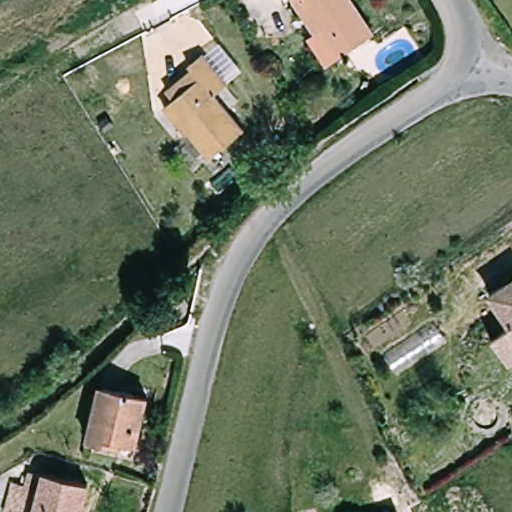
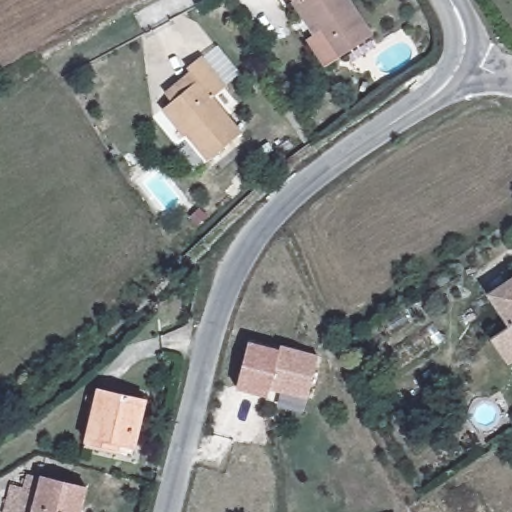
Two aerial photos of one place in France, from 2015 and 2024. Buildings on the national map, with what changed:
unchanged [(314,35),(291,0),(348,0),(371,35),(340,56),(327,66),(308,39),(314,35)]
unchanged [(161,101),(171,95),(174,94),(168,84),(197,66),(194,61),(211,50),(232,83),(217,93),(241,132),(202,157),(183,129),(180,130),(161,101)]
unchanged [(503,332),(511,326),(490,296),(512,281),(512,362),(510,364),(492,340),(503,332)]
unchanged [(447,342),(394,375),(383,356),(432,322),(447,342)]
new [(249,343),(279,351),(280,345),(319,355),(308,400),(271,391),(268,399),(237,391),(249,343)]
unchanged [(148,402),(136,448),(122,444),(120,450),(88,442),(103,390),(148,402)]
unchanged [(81,512),(18,512),(23,491),(40,495),(45,478),(87,488),(81,512)]

